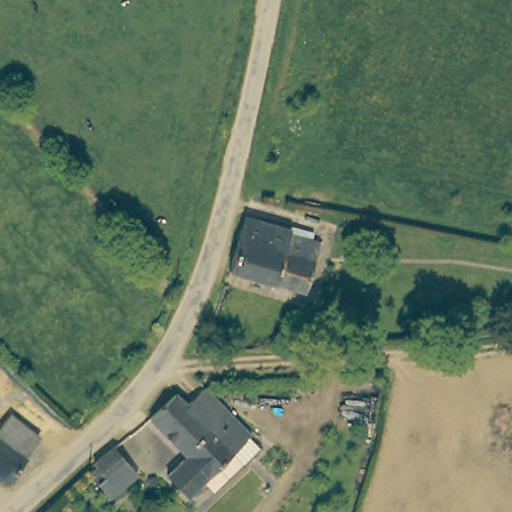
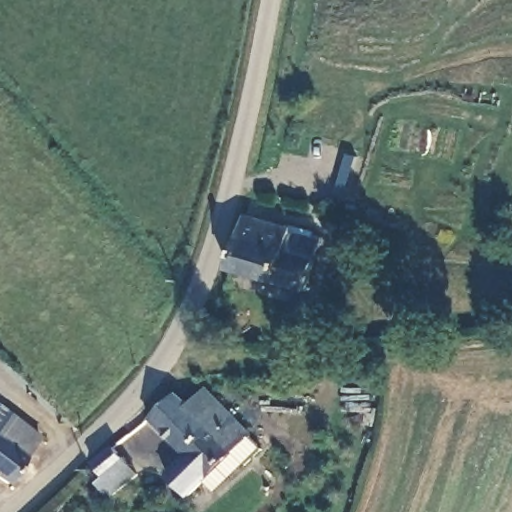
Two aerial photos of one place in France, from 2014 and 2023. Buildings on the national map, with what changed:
unchanged [(313,263),(304,290),(231,268),(240,240),(246,216),(318,240),(313,263)]
unchanged [(258,449),(239,467),(214,443),(206,434),(212,427),(176,394),(182,388),(189,383),(194,381),(258,449)]
unchanged [(176,394),(212,427),(206,434),(214,443),(172,483),(170,484),(164,477),(184,455),(147,420),(176,394)]
unchanged [(14,413),(41,435),(7,484),(0,479),(0,429),(14,413)]
unchanged [(222,482),(225,486),(207,500),(197,490),(187,500),(170,484),(172,483),(214,443),(239,467),(222,482)]
unchanged [(139,474),(114,495),(89,465),(114,444),(139,474)]

